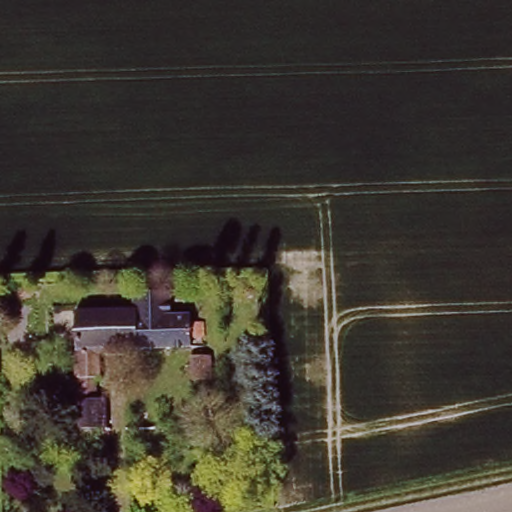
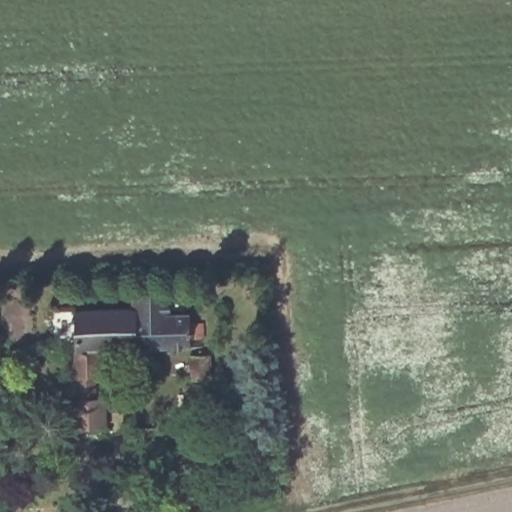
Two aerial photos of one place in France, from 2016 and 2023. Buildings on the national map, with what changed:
unchanged [(76,397),(75,377),(72,311),(133,309),(132,297),(173,295),(174,315),(187,315),(187,324),(199,324),(200,341),(187,341),(187,349),(98,351),(99,377),(92,377),(92,396),(76,397)]
unchanged [(206,358),(206,382),(186,381),(186,358),(206,358)]

